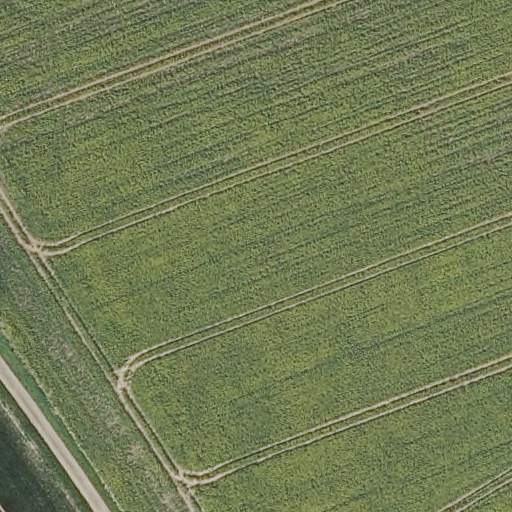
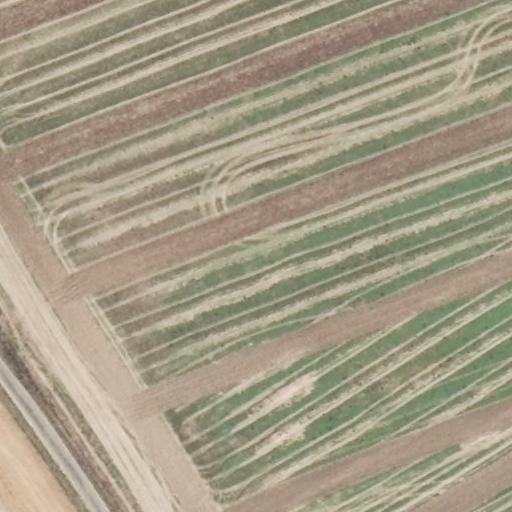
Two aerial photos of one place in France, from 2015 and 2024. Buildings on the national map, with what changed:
[]

